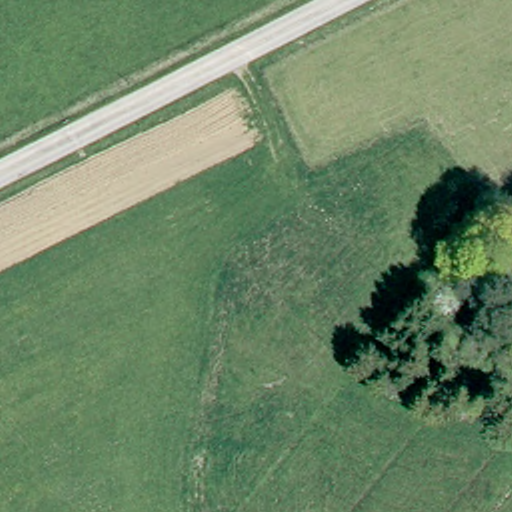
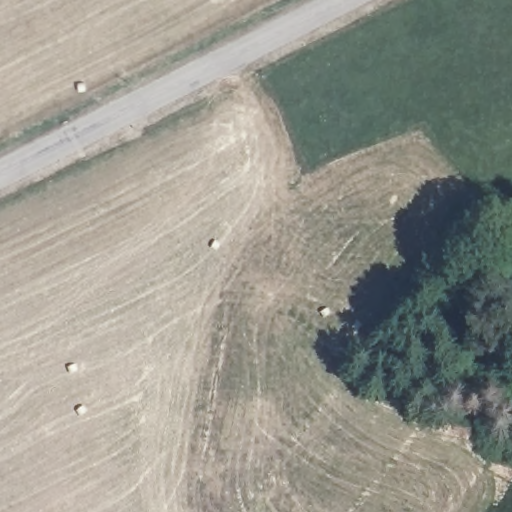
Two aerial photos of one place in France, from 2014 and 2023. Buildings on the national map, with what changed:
[]

